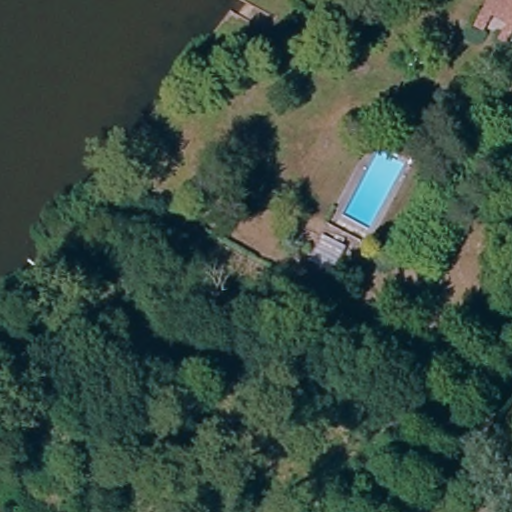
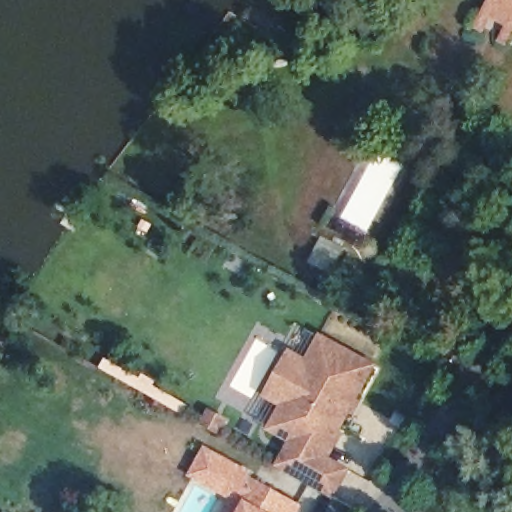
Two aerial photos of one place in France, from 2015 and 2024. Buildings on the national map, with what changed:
unchanged [(512,19),(488,8),(492,0),(512,0),(512,19)]
unchanged [(364,143),(374,126),(403,142),(394,158),(377,150),(364,143)]
new [(270,392),(292,352),(309,361),(323,334),(376,363),(326,454),(351,467),(335,496),(280,465),(295,438),(273,426),(287,401),(270,392)]
new [(295,512),(244,512),(252,498),(221,484),(231,464),(300,503),(295,512)]

